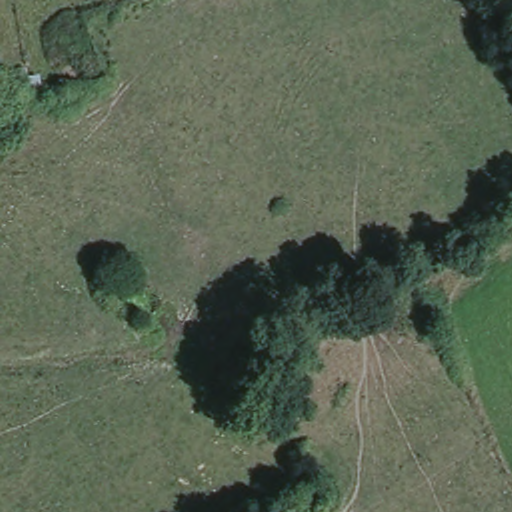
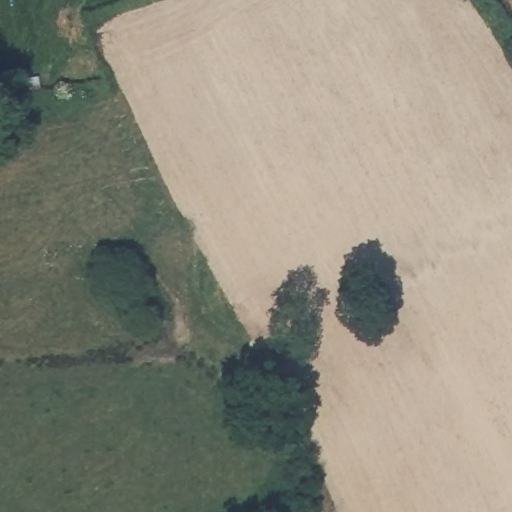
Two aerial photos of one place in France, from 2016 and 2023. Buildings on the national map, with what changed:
unchanged [(25,71),(29,91),(9,96),(6,76),(25,71)]

